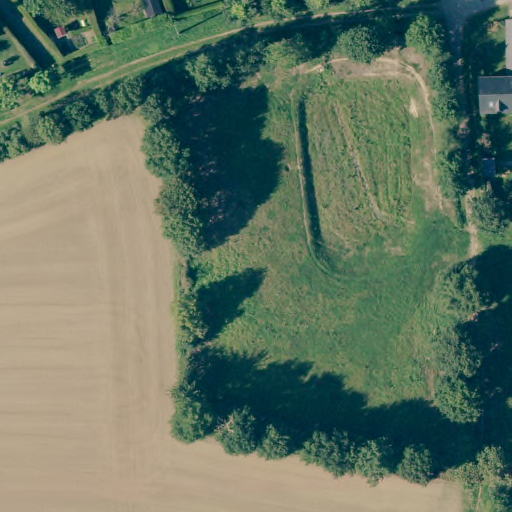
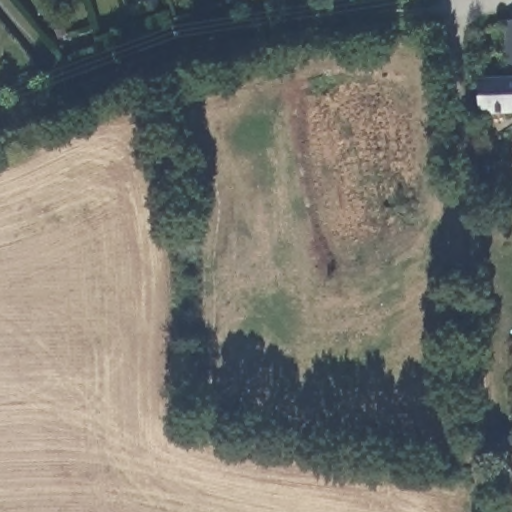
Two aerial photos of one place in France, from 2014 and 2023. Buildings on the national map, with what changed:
unchanged [(144,0),(158,0),(162,11),(147,16),(142,1),(144,0)]
unchanged [(232,0),(248,0),(234,5),(232,0)]

